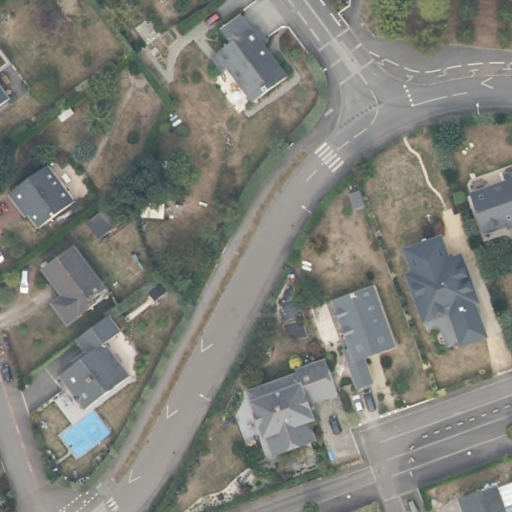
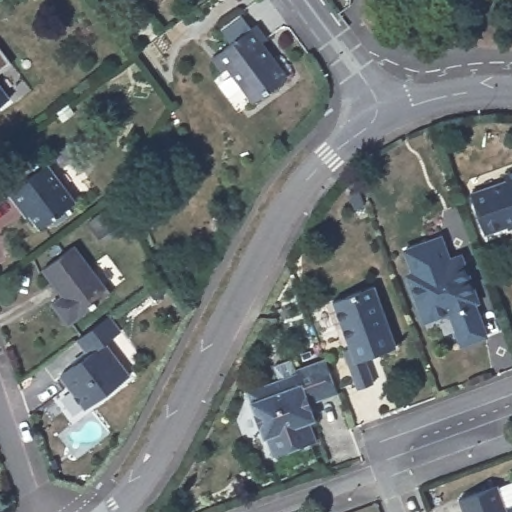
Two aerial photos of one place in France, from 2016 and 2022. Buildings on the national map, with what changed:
unchanged [(261,40),(287,73),(256,96),(232,63),(224,70),(213,55),(255,24),(265,36),(261,40)]
unchanged [(0,105),(0,85),(9,98),(0,105)]
unchanged [(84,108),(69,120),(61,110),(76,98),(84,108)]
unchanged [(159,140),(175,150),(169,163),(154,154),(157,143),(159,140)]
unchanged [(50,164),(75,201),(41,226),(25,203),(20,206),(10,192),(50,164)]
unchanged [(488,232),(472,187),(509,173),(507,168),(512,167),(512,223),(488,232)]
unchanged [(415,293),(410,276),(413,266),(406,244),(441,231),(450,254),(461,250),(472,282),(469,283),(487,330),(463,339),(450,307),(438,311),(423,316),(415,293)]
unchanged [(105,291),(66,322),(52,303),(63,294),(45,266),(72,245),(105,291)]
unchanged [(351,384),(343,360),(350,358),(329,298),(375,280),(396,341),(360,354),(368,378),(351,384)]
unchanged [(109,340),(132,374),(87,408),(64,373),(94,351),(85,337),(115,315),(125,328),(109,340)]
unchanged [(315,398),(315,403),(310,404),(321,432),(278,448),(271,430),(268,429),(252,383),(300,366),(300,361),(330,351),(343,389),(315,398)]
unchanged [(507,512),(462,512),(456,496),(495,481),(507,512)]

